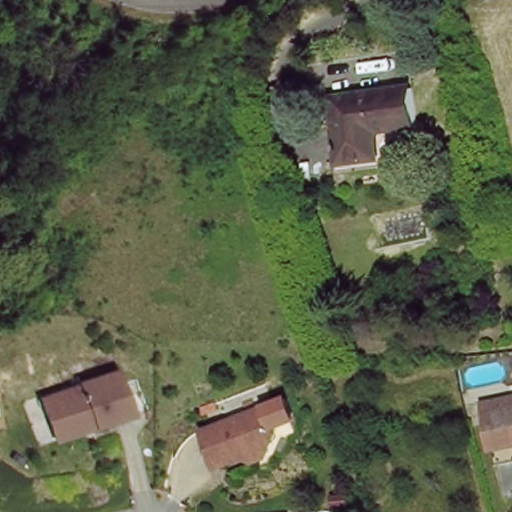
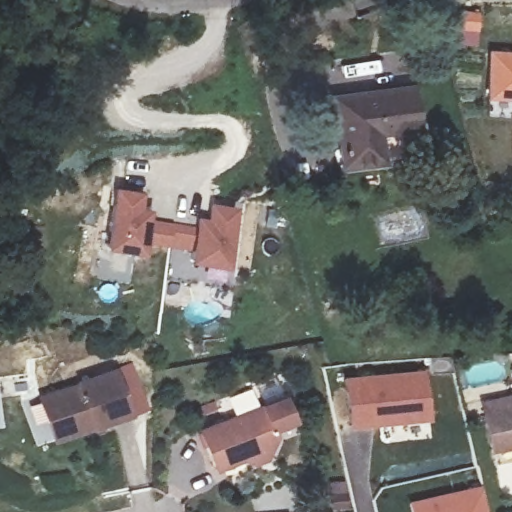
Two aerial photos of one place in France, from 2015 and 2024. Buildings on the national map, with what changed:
new [(512,51),(512,108),(511,116),(487,114),(487,97),(490,49),(512,51)]
unchanged [(382,156),(345,161),(335,94),(414,82),(420,121),(377,128),(382,156)]
new [(145,192),(142,208),(151,209),(150,217),(196,223),(198,214),(208,217),(211,201),(238,207),(228,267),(190,261),(192,247),(146,239),(144,255),(105,248),(116,187),(145,192)]
new [(426,369),(432,419),(350,429),(345,377),(426,369)]
unchanged [(51,428),(43,404),(82,389),(81,387),(117,374),(133,416),(97,430),(95,423),(81,428),(84,434),(65,441),(58,444),(51,428)]
new [(492,452),(481,401),(512,395),(512,445),(492,452)]
unchanged [(200,432),(263,408),(274,436),(263,459),(253,455),(214,470),(200,432)]
new [(488,512),(412,512),(410,502),(482,486),(488,512)]

